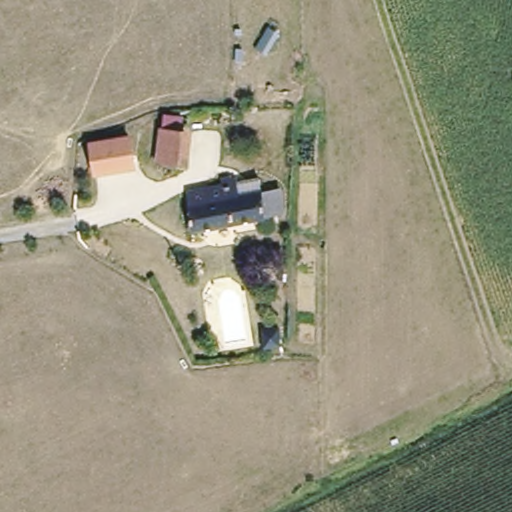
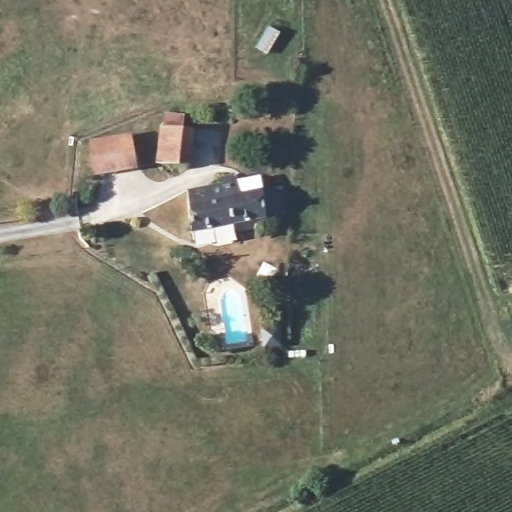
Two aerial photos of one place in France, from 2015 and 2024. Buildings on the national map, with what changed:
unchanged [(160,172),(155,149),(151,130),(168,125),(177,125),(186,166),(164,171),(160,172)]
unchanged [(94,175),(88,142),(127,135),(133,167),(94,175)]
unchanged [(187,185),(259,170),(262,184),(276,182),(280,181),(285,207),(280,207),(194,225),(187,185)]

